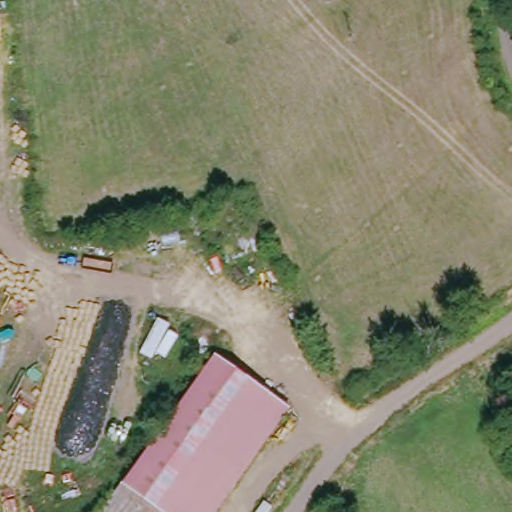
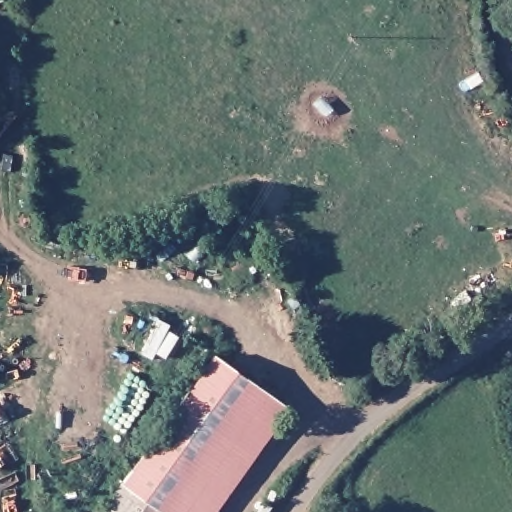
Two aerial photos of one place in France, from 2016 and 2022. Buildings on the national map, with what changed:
unchanged [(212,358),(282,411),(208,512),(96,512),(212,358)]

